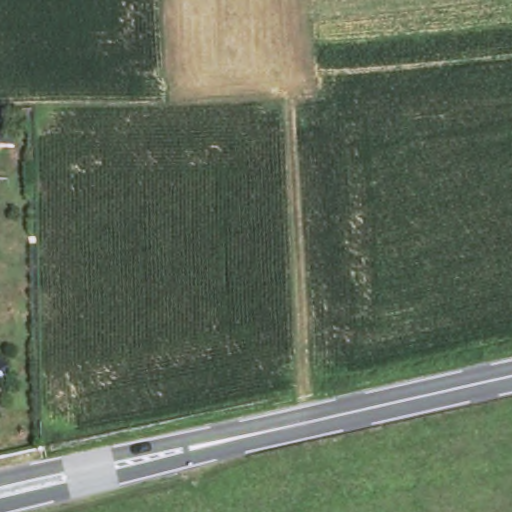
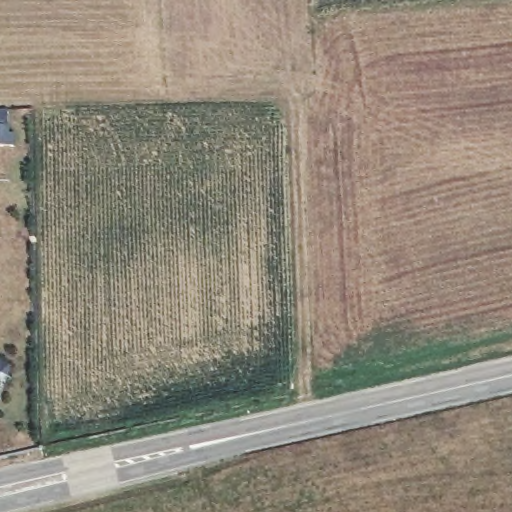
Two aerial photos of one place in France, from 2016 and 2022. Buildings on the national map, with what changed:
unchanged [(0,138),(0,123),(12,122),(12,137),(0,138)]

